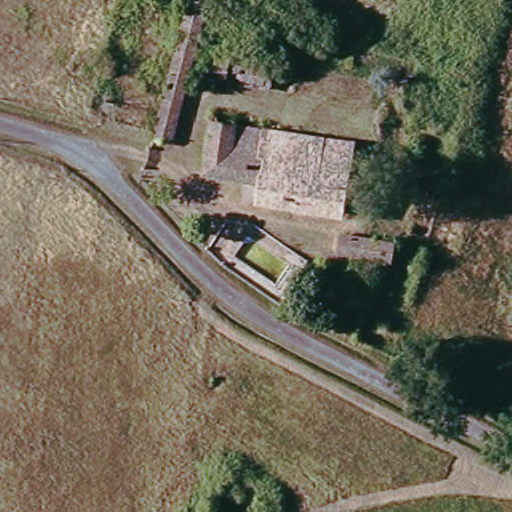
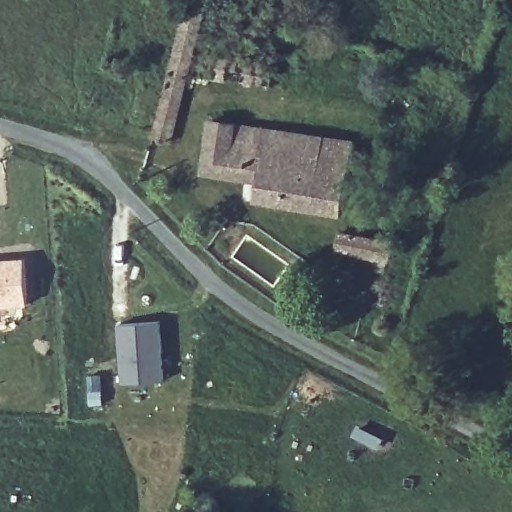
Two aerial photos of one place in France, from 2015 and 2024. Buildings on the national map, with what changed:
unchanged [(206,7),(188,69),(171,64),(188,2),(206,7)]
unchanged [(211,57),(268,64),(266,85),(209,77),(210,70),(211,57)]
unchanged [(188,69),(168,139),(150,134),(171,64),(188,69)]
unchanged [(206,168),(212,122),(353,142),(343,212),(255,200),(258,175),(206,168)]
unchanged [(387,239),(385,256),(373,255),(342,255),(342,237),(375,239),(387,239)]
new [(0,306),(0,259),(26,257),(28,304),(0,306)]
new [(166,379),(126,383),(121,325),(163,320),(166,379)]

